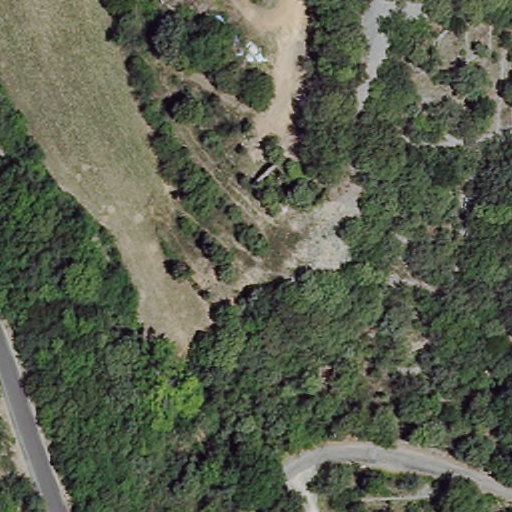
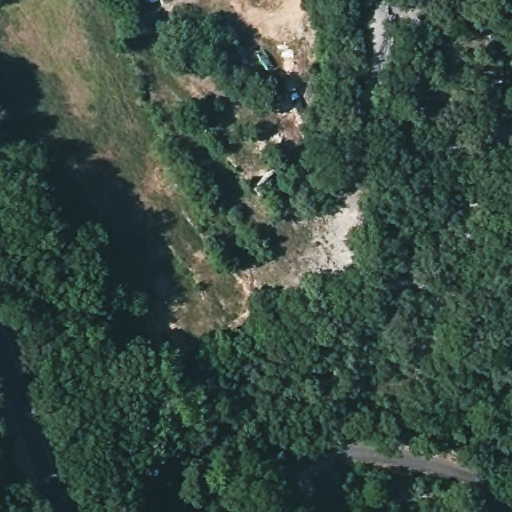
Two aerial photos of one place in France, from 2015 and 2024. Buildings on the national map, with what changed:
unchanged [(303,188),(276,213),(253,186),(277,161),(303,188)]

